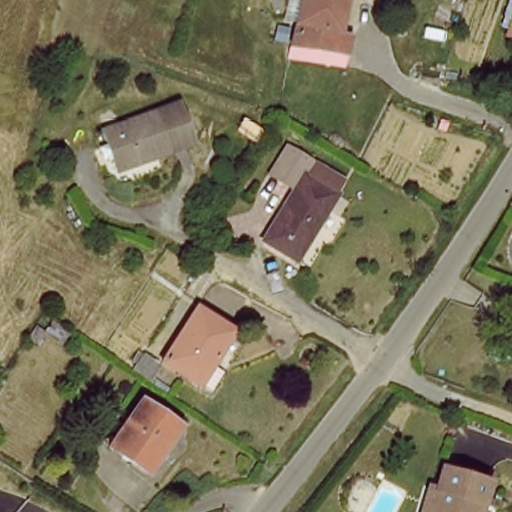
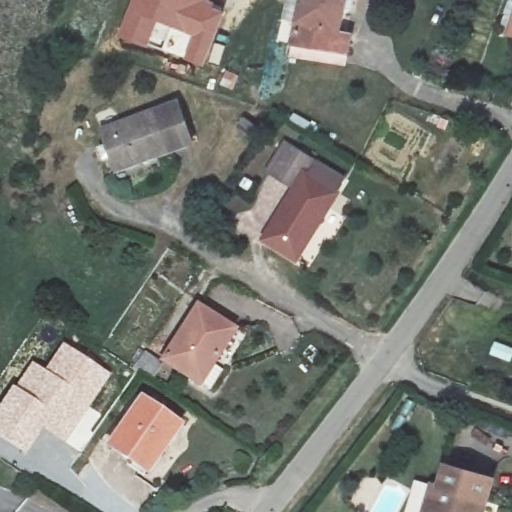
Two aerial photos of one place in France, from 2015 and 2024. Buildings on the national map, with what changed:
new [(208,0),(228,10),(216,40),(227,45),(219,65),(208,61),(206,67),(184,59),(193,36),(158,22),(147,47),(116,37),(131,0),(208,0)]
unchanged [(353,48),(349,62),(291,49),(302,0),(352,0),(341,44),(353,48)]
unchanged [(497,27),(511,0),(512,0),(512,33),(497,27)]
new [(158,22),(193,36),(184,59),(147,47),(158,22)]
unchanged [(185,155),(134,175),(116,131),(167,110),(185,155)]
unchanged [(336,204),(299,262),(257,235),(294,176),(336,204)]
unchanged [(243,335),(205,394),(167,368),(204,310),(243,335)]
new [(66,443),(43,430),(25,456),(0,439),(0,406),(32,361),(44,370),(62,343),(110,375),(89,407),(102,416),(80,452),(66,443)]
unchanged [(180,430),(149,477),(110,450),(143,402),(180,430)]
unchanged [(435,491),(442,492),(449,467),(500,482),(492,512),(428,512),(435,491)]

